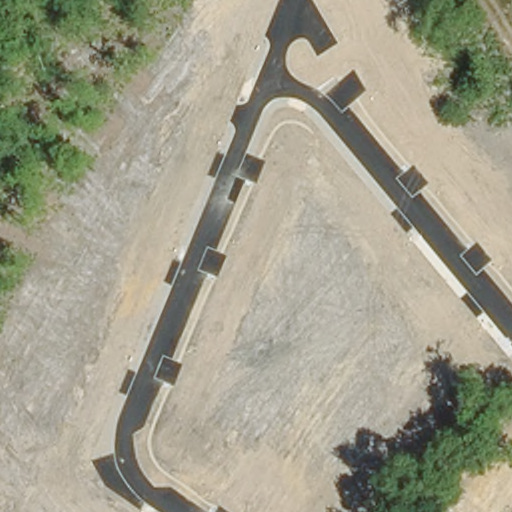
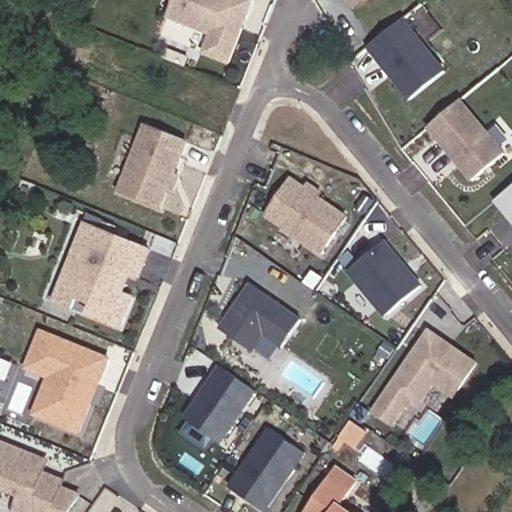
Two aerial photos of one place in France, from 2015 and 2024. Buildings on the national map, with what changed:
new [(210,35),(166,18),(174,0),(256,0),(229,64),(204,54),(210,35)]
new [(351,9),(347,0),(371,0),(351,9)]
new [(409,101),(368,47),(406,17),(447,71),(409,101)]
new [(471,181),(429,127),(463,99),(507,152),(471,181)]
new [(163,210),(118,192),(144,123),(189,142),(177,173),(182,175),(175,193),(169,192),(163,210)]
new [(349,217),(322,255),(266,216),(292,176),(305,185),(308,182),(323,192),(321,196),(349,217)]
new [(512,188),(512,222),(495,202),(512,188)]
new [(121,330),(88,316),(92,305),(77,299),(72,311),(52,302),(84,223),(153,250),(140,281),(131,277),(125,293),(135,296),(121,330)]
new [(347,271),(385,240),(421,289),(382,317),(347,271)]
new [(281,348),(264,336),(253,352),(219,326),(250,283),(301,318),(281,348)]
new [(454,399),(435,385),(420,405),(408,407),(393,429),(370,412),(429,328),(480,362),(454,399)]
new [(32,415),(46,378),(24,369),(39,329),(111,358),(79,434),(32,415)]
new [(223,444),(184,418),(219,365),(258,392),(223,444)]
new [(264,512),(228,487),(268,427),(306,453),(267,512),(264,512)]
new [(14,512),(19,497),(0,490),(0,441),(50,461),(46,471),(65,479),(63,487),(83,493),(71,512),(14,512)]
new [(358,480),(345,505),(354,512),(305,512),(336,465),(358,480)]

